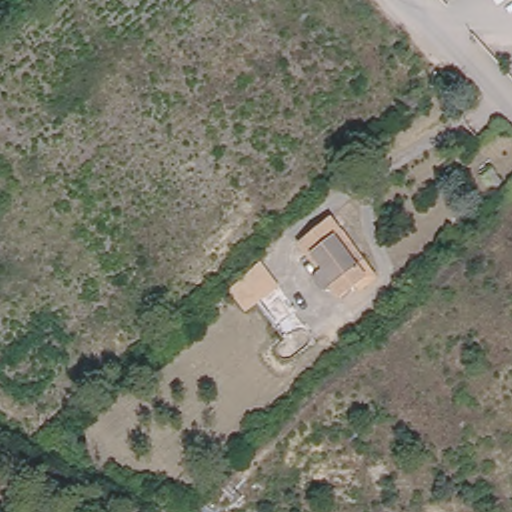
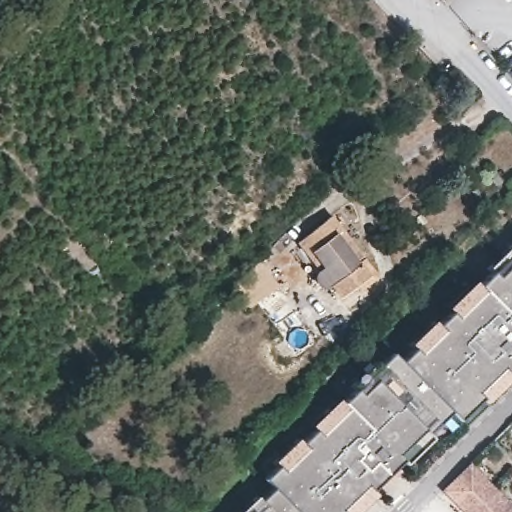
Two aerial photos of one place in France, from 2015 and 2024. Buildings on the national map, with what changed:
unchanged [(353,279),(337,291),(329,282),(325,283),(318,282),(315,278),(313,272),(314,268),(315,263),(296,238),(330,212),(338,224),(361,254),(375,272),(366,278),(358,284),(353,279)]
new [(453,424),(445,412),(431,424),(350,512),(245,512),(268,490),(260,481),(389,353),(394,357),(467,286),(465,284),(508,245),(512,249),(512,362),(453,424)]
new [(263,265),(281,289),(250,314),(231,289),(263,265)]
new [(510,420),(512,418),(512,423),(510,420)]
new [(461,512),(440,490),(469,466),(512,508),(512,512),(461,512)]

